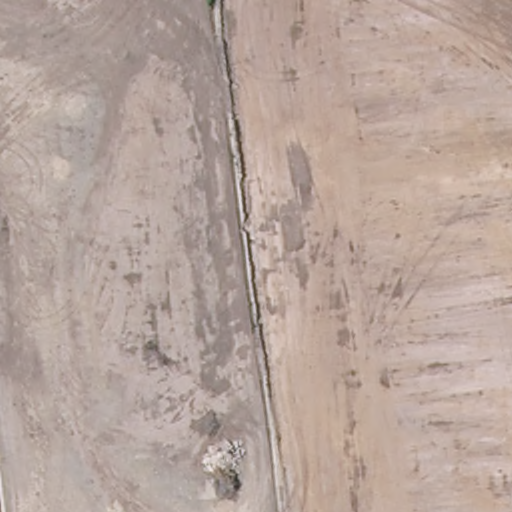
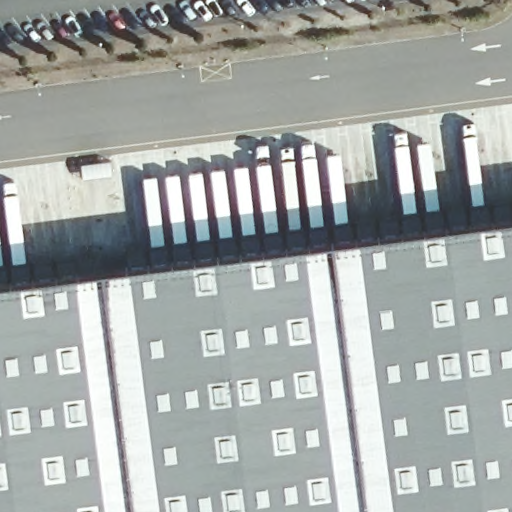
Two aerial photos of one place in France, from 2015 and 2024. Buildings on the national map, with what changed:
new [(512,216),(512,512),(0,512),(0,281),(512,216)]

